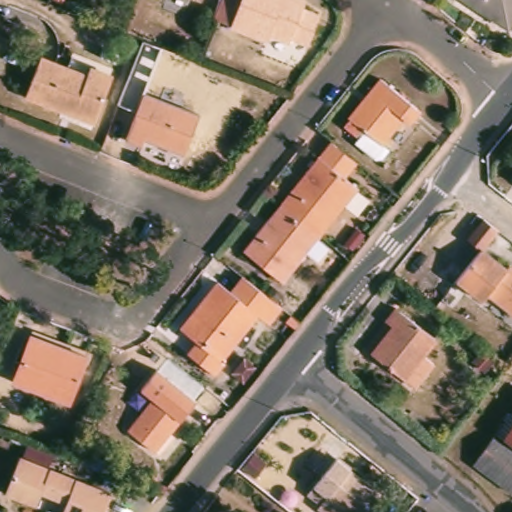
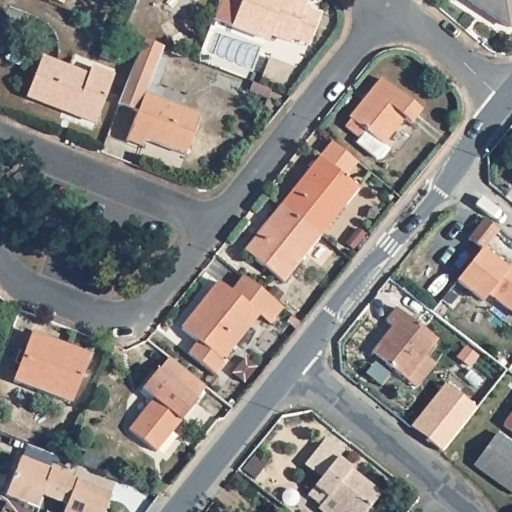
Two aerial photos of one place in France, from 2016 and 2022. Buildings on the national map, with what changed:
unchanged [(62,5),(53,1),(53,0),(64,0),(62,5)]
unchanged [(190,2),(185,0),(191,0),(190,2)]
unchanged [(318,26),(309,49),(291,42),(289,46),(270,39),(268,46),(213,25),(223,0),(289,0),(305,6),(302,14),(300,18),(318,26)]
unchanged [(512,32),(462,1),(463,0),(512,0),(512,32)]
unchanged [(46,62),(92,80),(96,72),(117,80),(98,129),(31,102),(46,62)]
unchanged [(385,82),(425,116),(414,129),(408,124),(386,151),(369,136),(363,144),(347,130),(353,124),(352,122),(385,82)]
unchanged [(149,98),(204,119),(187,160),(149,144),(146,151),(130,145),(149,98)]
unchanged [(336,141),(361,163),(349,178),(362,188),(324,236),(285,203),(323,157),(336,141)]
unchanged [(324,236),(287,283),(248,251),(285,203),(324,236)]
unchanged [(488,251),(512,270),(512,313),(492,298),(486,305),(460,284),(485,251),(472,241),(488,221),(503,232),(488,251)]
unchanged [(280,312),(269,326),(259,319),(222,366),(226,369),(216,381),(189,359),(198,348),(180,334),(218,286),(230,296),(241,281),(280,312)]
unchanged [(384,323),(395,310),(436,342),(404,382),(370,354),(390,328),(384,323)]
unchanged [(35,340),(93,362),(74,408),(17,387),(35,340)]
unchanged [(434,365),(414,389),(404,382),(424,356),(434,365)]
unchanged [(154,370),(194,402),(154,452),(126,431),(150,401),(137,391),(154,370)]
new [(475,410),(441,451),(409,426),(441,385),(475,410)]
unchanged [(512,452),(502,445),(512,431),(512,452)]
unchanged [(512,500),(472,472),(495,440),(502,445),(512,452),(512,500)]
unchanged [(4,494),(19,457),(110,494),(102,512),(62,512),(65,504),(40,494),(35,507),(23,502),(4,494)]
unchanged [(379,495),(367,509),(371,512),(342,512),(340,511),(339,512),(325,512),(307,498),(335,461),(348,471),(379,495)]

